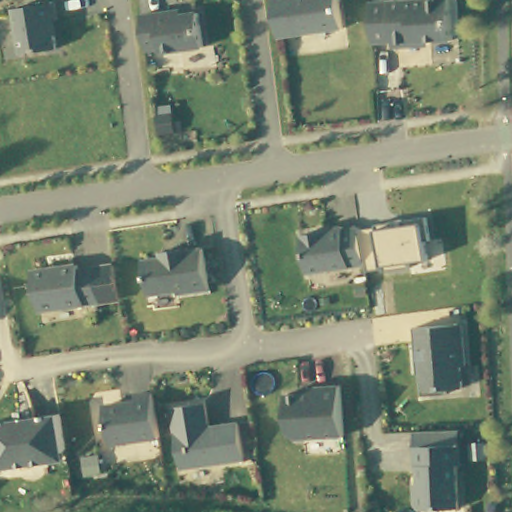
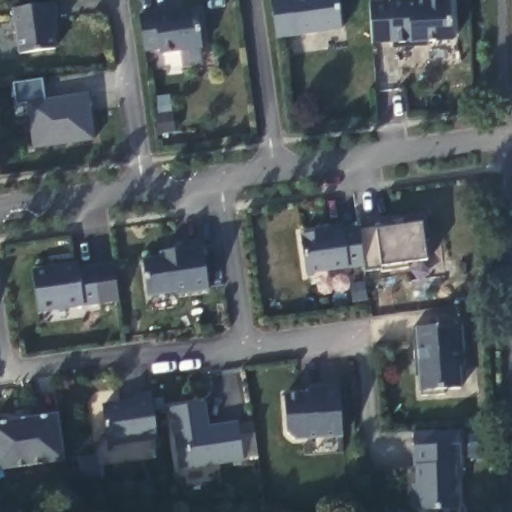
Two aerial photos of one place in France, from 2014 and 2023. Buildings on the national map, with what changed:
unchanged [(344,31),(278,39),(272,0),(340,0),(344,31)]
unchanged [(446,0),(453,0),(455,41),(430,43),(428,41),(415,42),(415,48),(396,50),(396,44),(381,45),(375,46),(373,5),(379,5),(446,0)]
unchanged [(59,19),(53,20),(57,50),(22,55),(16,9),(56,3),(59,19)]
unchanged [(205,48),(163,53),(162,48),(148,50),(147,50),(143,18),(143,16),(175,12),(175,17),(200,14),(205,48)]
new [(28,102),(20,103),(16,82),(44,78),(48,98),(89,93),(96,136),(35,146),(28,102)]
unchanged [(175,113),(177,131),(162,133),(160,115),(175,113)]
unchanged [(360,226),(428,217),(432,241),(427,241),(428,258),(408,261),(409,267),(386,270),(385,267),(366,270),(366,264),(360,226)]
unchanged [(328,231),(328,227),(344,225),(345,228),(360,226),(366,264),(309,271),(304,233),(328,231)]
unchanged [(180,293),(179,291),(151,295),(146,260),(164,257),(163,252),(172,251),(189,248),(190,250),(204,248),(211,289),(180,293)]
unchanged [(78,266),(78,271),(96,269),(101,303),(35,312),(30,272),(78,266)]
unchanged [(421,367),(419,331),(466,328),(469,369),(465,369),(466,391),(450,392),(450,397),(427,398),(426,380),(422,380),(421,367)]
unchanged [(310,388),(322,387),(339,387),(340,386),(343,436),(298,439),(289,433),(286,395),(295,394),(310,393),(310,388)]
unchanged [(137,404),(136,398),(153,396),(160,439),(111,444),(106,407),(137,404)]
unchanged [(246,461),(182,471),(173,410),(207,404),(210,427),(224,425),(240,423),(246,461)]
unchanged [(36,464),(1,468),(0,468),(0,422),(15,420),(14,412),(26,411),(27,418),(30,418),(60,414),(62,427),(66,451),(67,460),(46,463),(36,464)]
unchanged [(417,466),(415,466),(414,447),(415,447),(413,431),(460,429),(461,444),(461,463),(456,464),(458,507),(418,509),(414,505),(413,495),(417,490),(417,466)]
unchanged [(101,474),(85,476),(83,458),(98,456),(101,474)]

